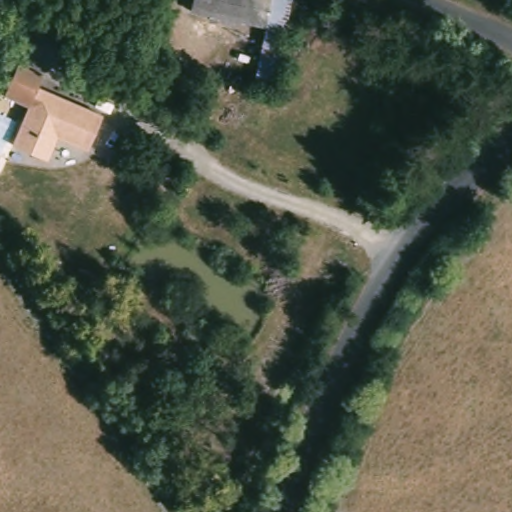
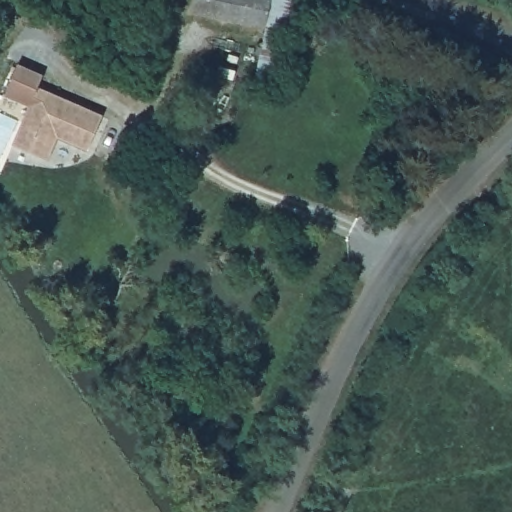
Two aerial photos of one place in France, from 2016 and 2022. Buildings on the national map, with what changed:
unchanged [(288,1),(277,64),(284,66),(278,96),(257,92),(252,90),(264,30),(188,15),(191,0),(281,0),(288,1)]
unchanged [(91,153),(59,140),(49,163),(14,149),(30,110),(4,99),(17,68),(43,78),(38,91),(105,119),(91,153)]

